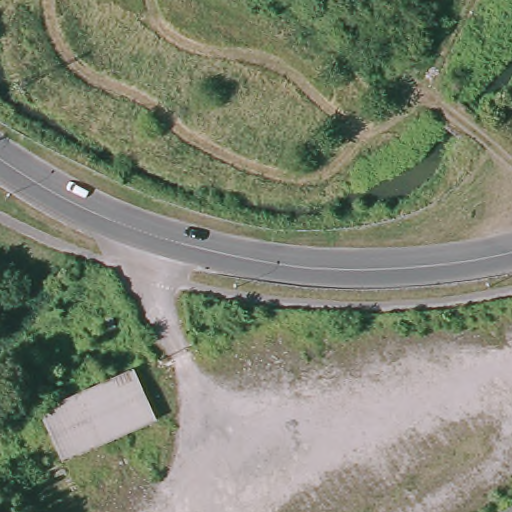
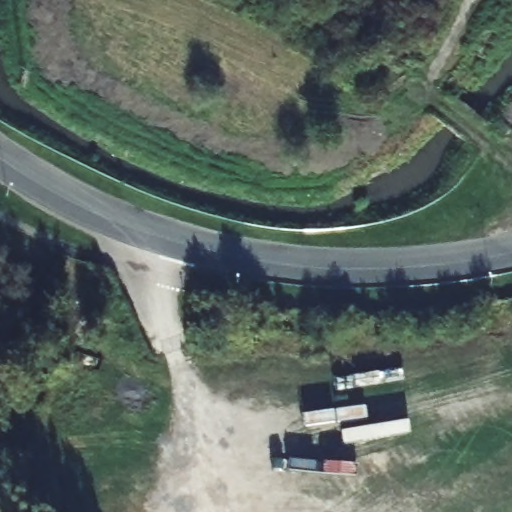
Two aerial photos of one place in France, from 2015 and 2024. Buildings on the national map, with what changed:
demolished [(152,416),(65,457),(45,412),(133,372),(152,416)]
demolished [(512,500),(512,512),(493,512),(512,500)]

